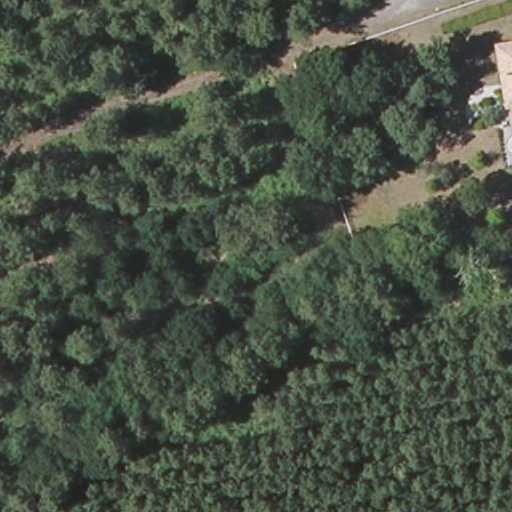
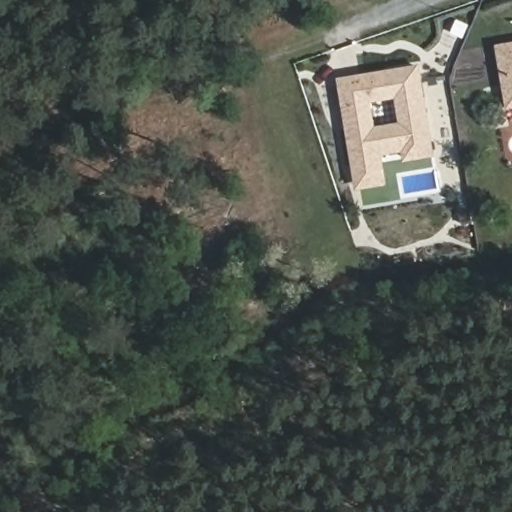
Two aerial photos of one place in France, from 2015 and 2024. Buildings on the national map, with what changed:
unchanged [(512,43),(512,109),(505,110),(496,45),(512,43)]
new [(420,64),(435,156),(403,161),(401,152),(382,155),(387,185),(355,189),(337,78),(420,64)]

